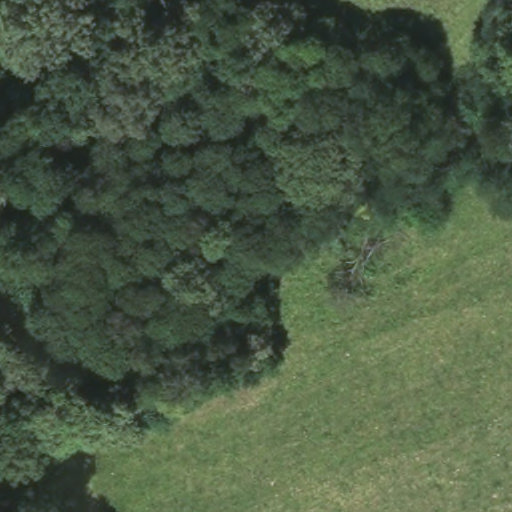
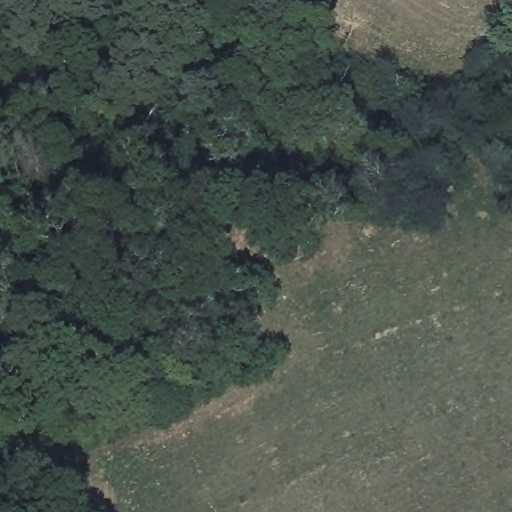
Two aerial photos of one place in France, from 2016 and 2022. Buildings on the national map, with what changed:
unchanged [(306,237),(311,257),(289,262),(287,242),(306,237)]

